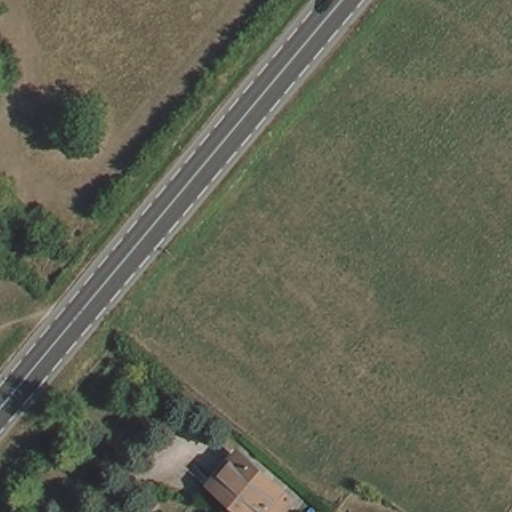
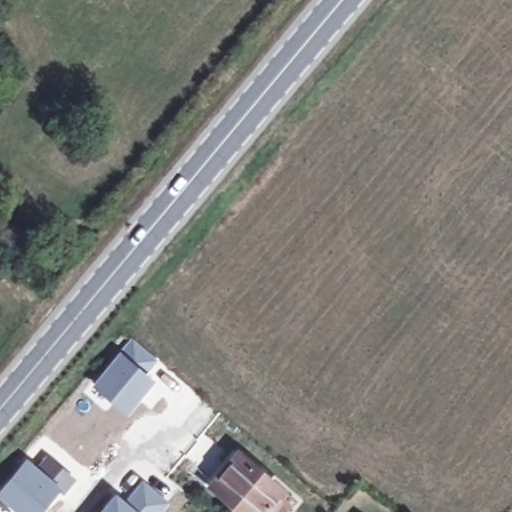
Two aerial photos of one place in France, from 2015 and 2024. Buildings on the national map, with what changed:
new [(131,336),(159,360),(148,373),(158,381),(129,415),(93,383),(131,336)]
unchanged [(281,512),(244,512),(233,503),(236,501),(213,481),(237,453),(279,490),(291,500),(281,512)]
new [(51,475),(61,465),(76,477),(64,490),(59,486),(37,512),(19,512),(0,496),(0,489),(28,456),(51,475)]
new [(143,478),(171,501),(162,512),(141,512),(125,498),(143,478)]
new [(116,491),(125,498),(141,512),(100,512),(116,491)]

